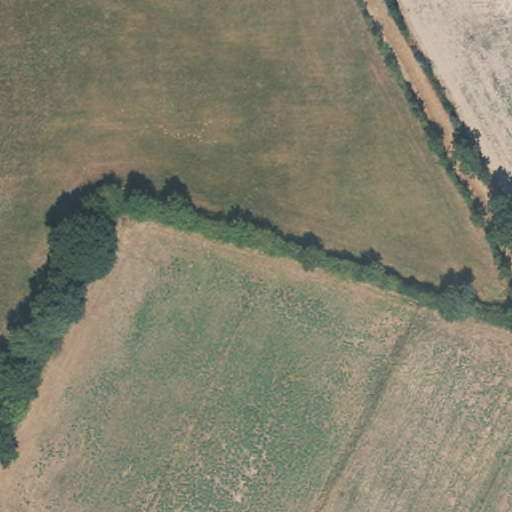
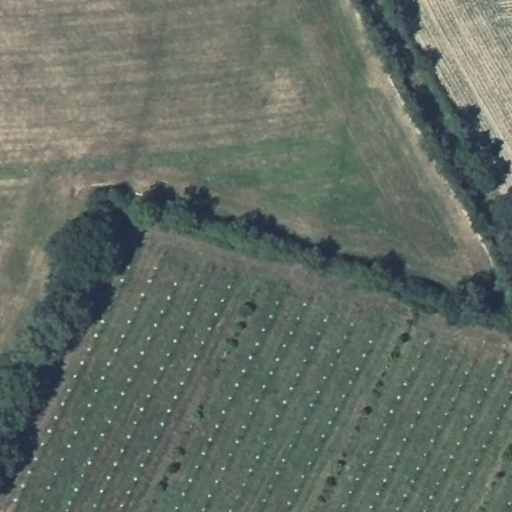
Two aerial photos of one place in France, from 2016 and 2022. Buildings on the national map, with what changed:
[]

